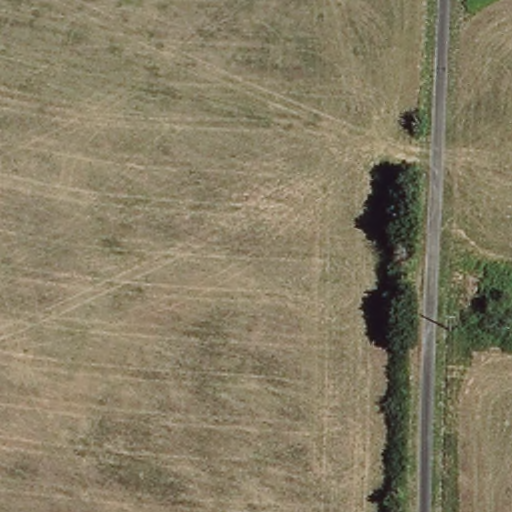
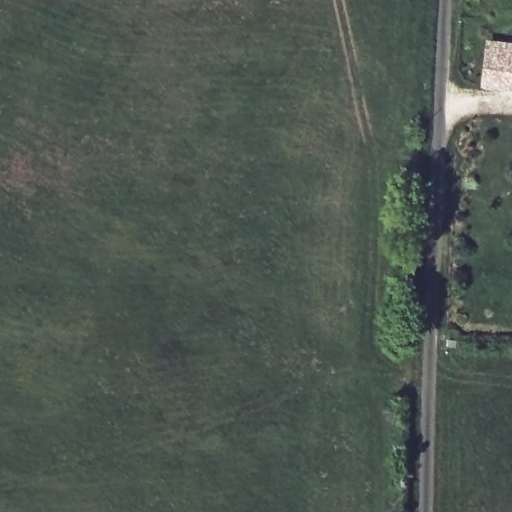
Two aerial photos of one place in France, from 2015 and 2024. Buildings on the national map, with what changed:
new [(487,39),(512,42),(512,90),(480,89),(483,68),(487,39)]

